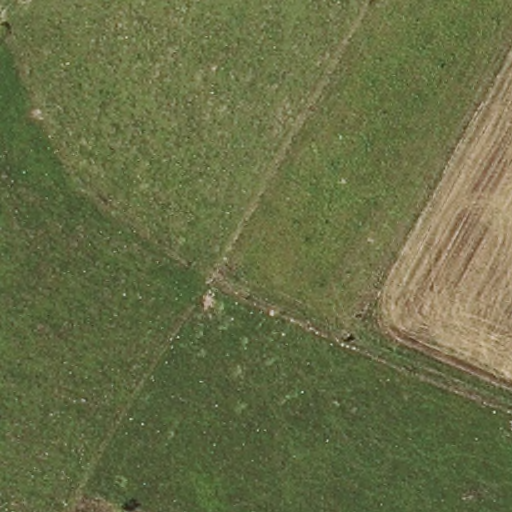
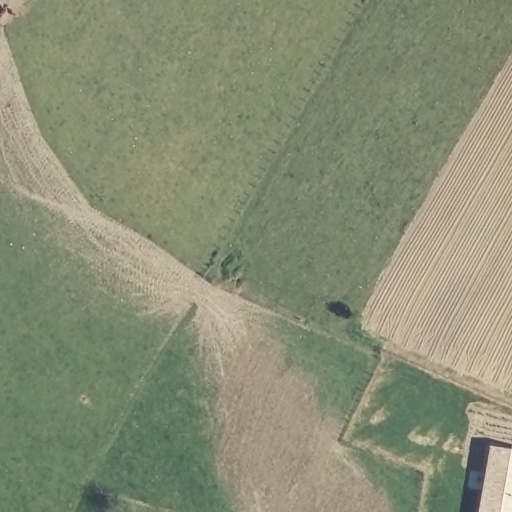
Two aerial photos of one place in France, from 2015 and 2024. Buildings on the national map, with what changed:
new [(512,453),(512,512),(478,512),(490,449),(512,453)]

